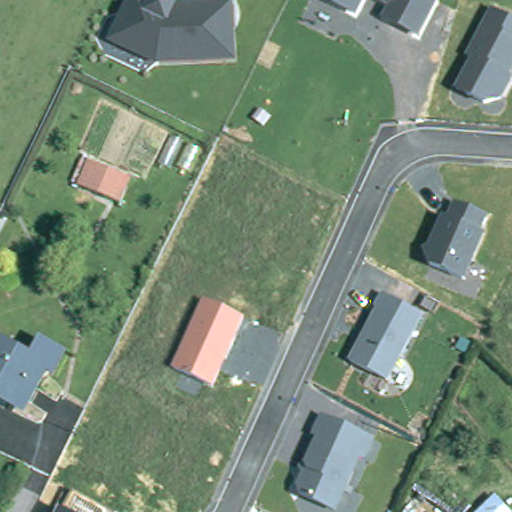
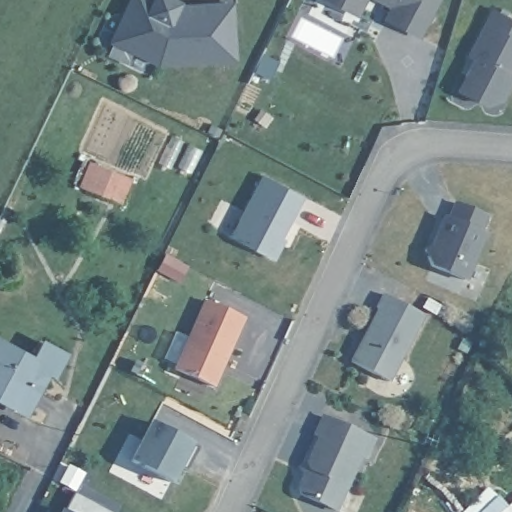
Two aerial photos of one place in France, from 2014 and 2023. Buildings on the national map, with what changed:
unchanged [(235,61),(156,65),(106,41),(126,0),(180,0),(178,4),(232,1),(235,61)]
unchanged [(356,16),(326,0),(365,0),(356,16)]
unchanged [(421,38),(383,19),(388,9),(370,0),(440,0),(421,38)]
unchanged [(512,22),(512,71),(509,76),(512,78),(512,85),(504,101),(484,106),(454,92),(468,62),(463,59),(487,10),(512,22)]
unchanged [(120,203),(78,186),(88,161),(131,177),(120,203)]
new [(282,243),(274,257),(233,235),(265,174),(303,194),(281,235),(285,237),(282,243)]
unchanged [(489,215),(483,233),(486,235),(467,285),(427,268),(423,256),(438,214),(446,218),(452,202),(489,215)]
new [(156,270),(163,254),(188,265),(179,281),(156,270)]
unchanged [(424,317),(389,382),(348,359),(379,297),(424,317)]
unchanged [(246,320),(217,387),(172,369),(201,301),(246,320)]
unchanged [(45,337),(67,349),(58,366),(51,363),(28,404),(0,389),(0,336),(36,355),(45,337)]
unchanged [(367,461),(361,459),(340,512),(338,512),(286,491),(319,418),(374,439),(367,461)]
new [(129,459),(149,419),(191,440),(171,482),(129,459)]
unchanged [(113,512),(60,512),(72,489),(113,512)]
unchanged [(508,512),(478,512),(494,495),(508,512)]

